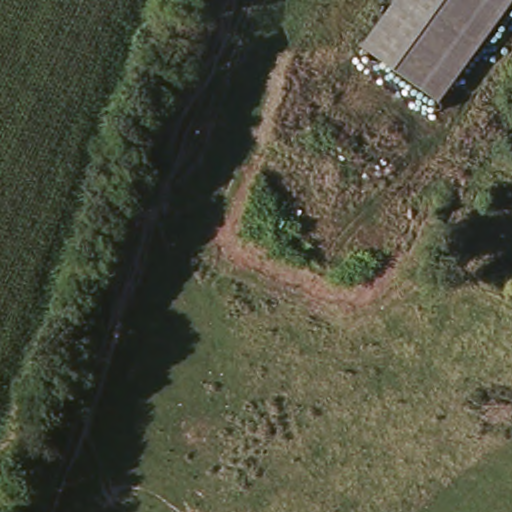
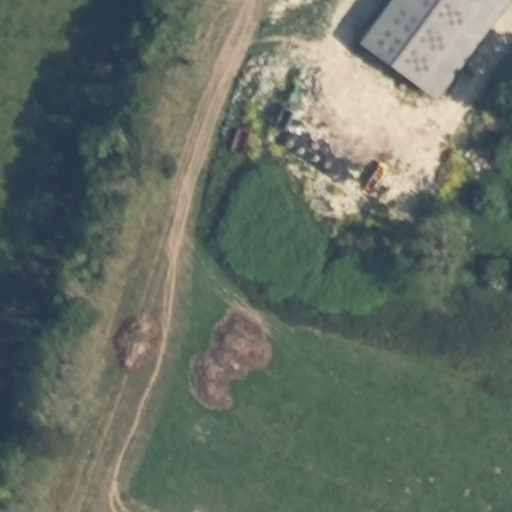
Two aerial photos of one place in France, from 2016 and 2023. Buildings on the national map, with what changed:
unchanged [(438,104),(357,44),(389,0),(512,0),(512,2),(438,104)]

